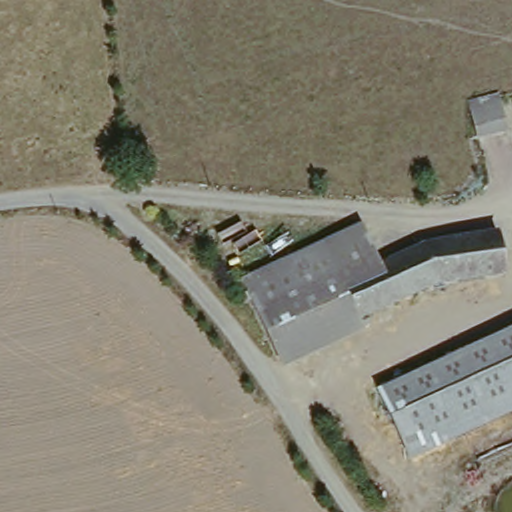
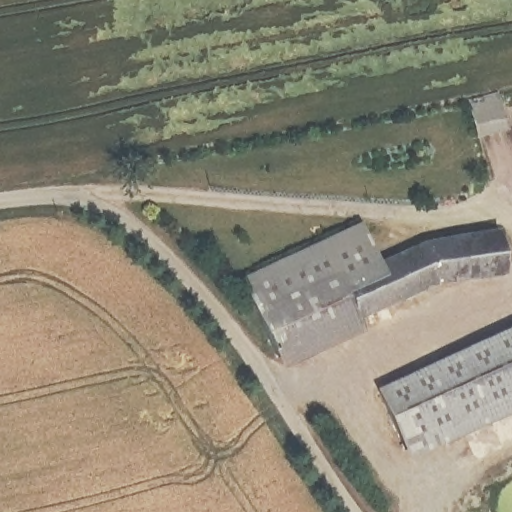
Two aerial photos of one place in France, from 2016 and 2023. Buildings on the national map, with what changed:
unchanged [(512,131),(512,138),(486,145),(476,112),(504,104),(512,131)]
unchanged [(264,325),(246,292),(354,233),(375,271),(433,244),(494,236),(502,278),(437,290),(370,318),(376,335),(363,341),(361,335),(349,340),(349,342),(340,347),(287,373),(264,325)]
unchanged [(377,390),(512,330),(512,413),(409,462),(377,390)]

